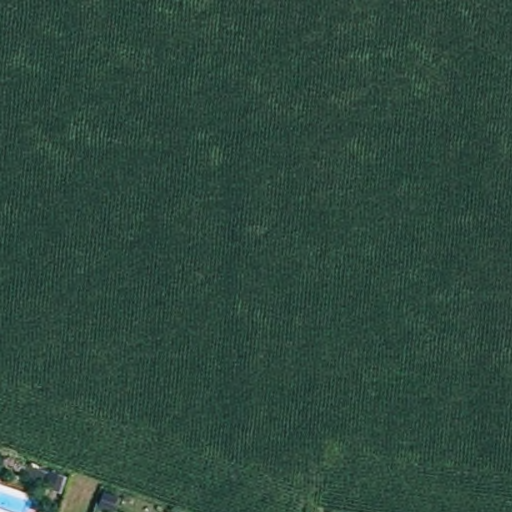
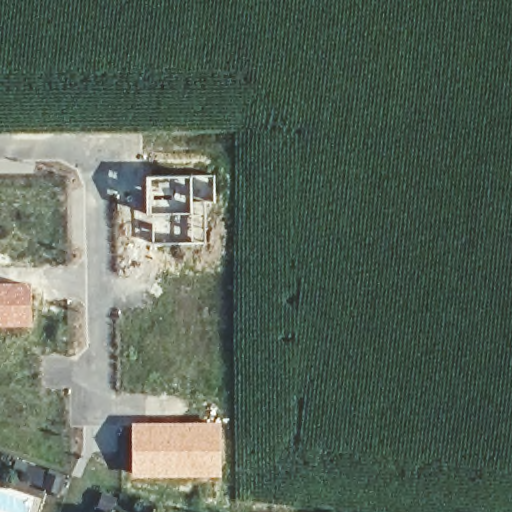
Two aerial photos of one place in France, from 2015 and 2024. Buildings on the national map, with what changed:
new [(154,214),(147,214),(147,175),(190,175),(214,175),(215,200),(206,200),(205,242),(154,241),(154,214)]
new [(32,325),(0,325),(0,281),(31,281),(32,325)]
new [(132,422),(221,422),(221,476),(134,476),(132,422)]

